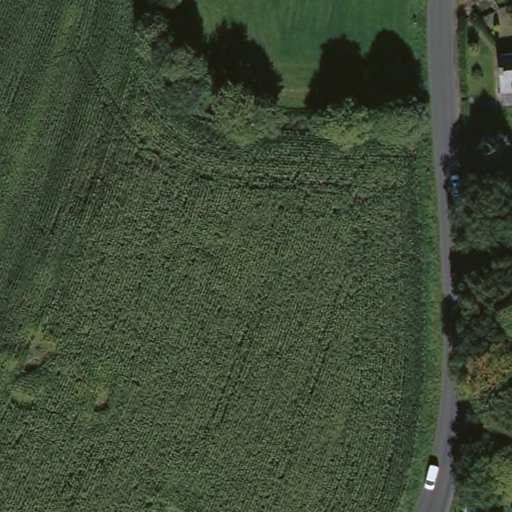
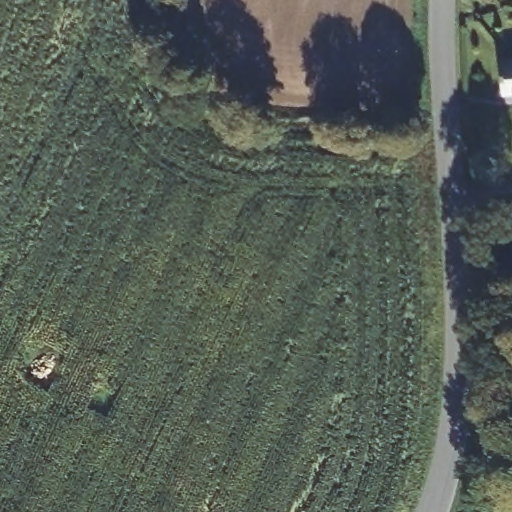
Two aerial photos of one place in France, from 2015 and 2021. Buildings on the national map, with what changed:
unchanged [(501,98),(498,62),(512,61),(512,97),(501,98)]

